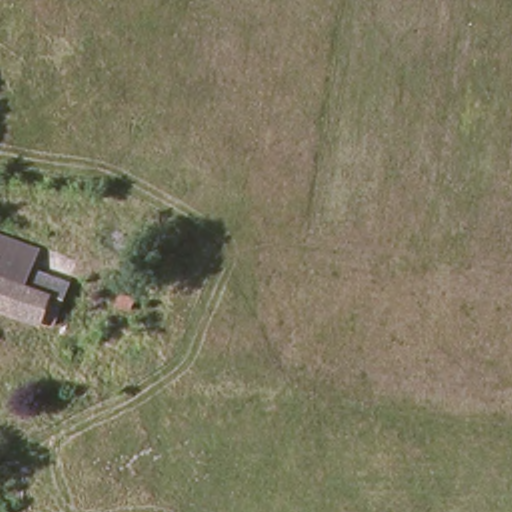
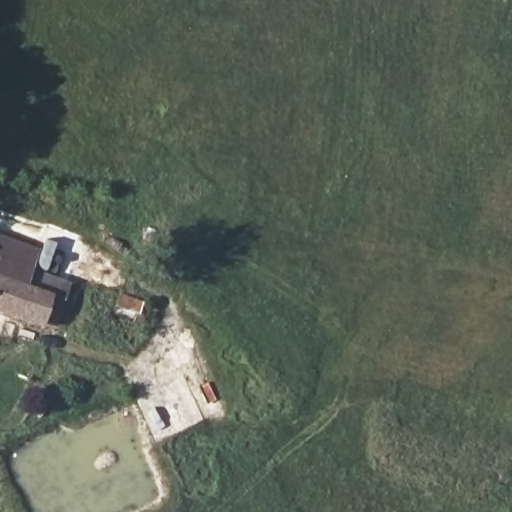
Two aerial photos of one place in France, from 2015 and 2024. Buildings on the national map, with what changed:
unchanged [(0,309),(0,243),(37,255),(31,284),(56,293),(46,324),(0,309)]

